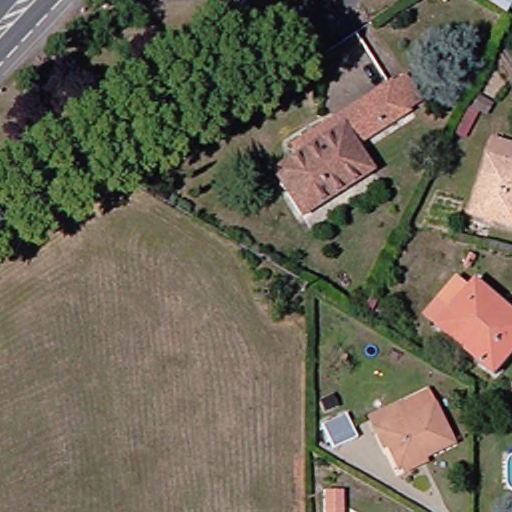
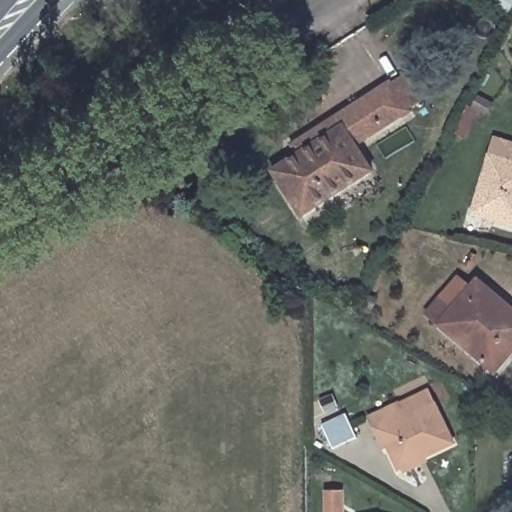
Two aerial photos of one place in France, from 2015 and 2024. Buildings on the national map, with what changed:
unchanged [(512,0),(512,6),(504,0),(512,0)]
unchanged [(378,170),(307,216),(277,170),(305,153),(299,145),(395,83),(409,74),(427,101),(413,110),(360,143),(378,170)]
unchanged [(497,98),(492,108),(479,100),(484,90),(497,98)]
unchanged [(512,225),(473,213),(495,136),(512,142),(512,225)]
unchanged [(431,313),(444,298),(464,275),(474,285),(473,286),(475,288),(478,284),(483,278),(510,302),(512,303),(512,361),(501,373),(431,313)]
unchanged [(459,442),(404,468),(386,430),(382,432),(374,416),(405,401),(406,403),(434,389),(459,442)]
unchanged [(339,443),(328,419),(352,408),(363,432),(339,443)]

